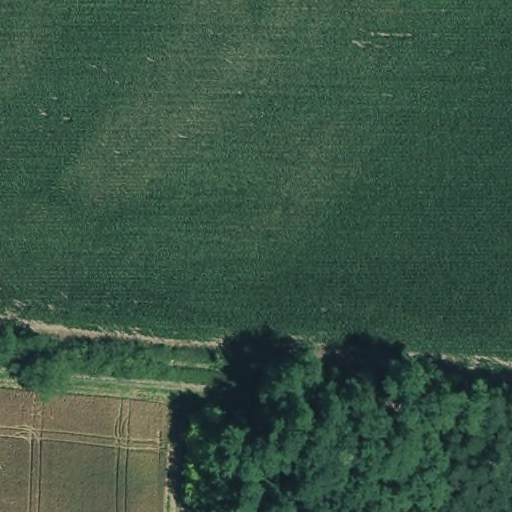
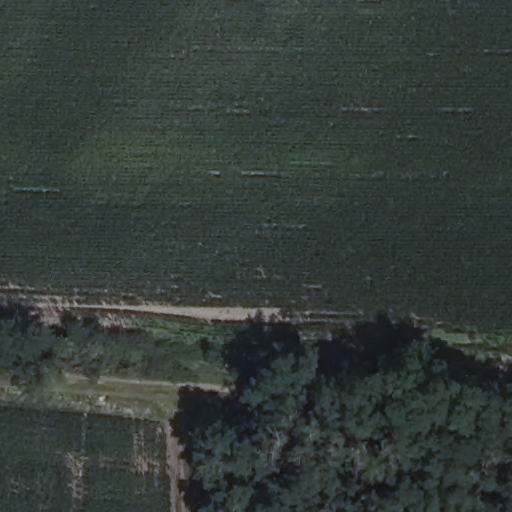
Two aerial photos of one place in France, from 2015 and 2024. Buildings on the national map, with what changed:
[]

